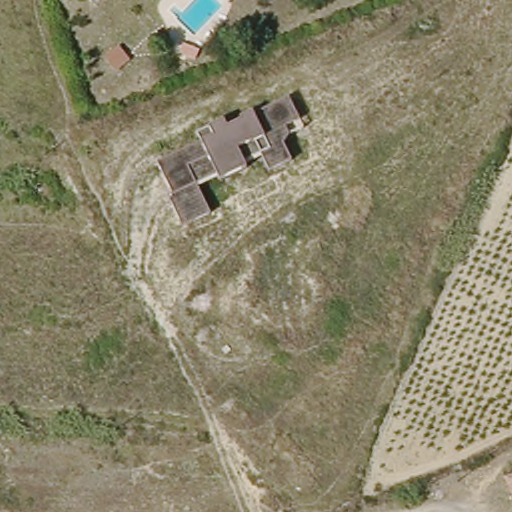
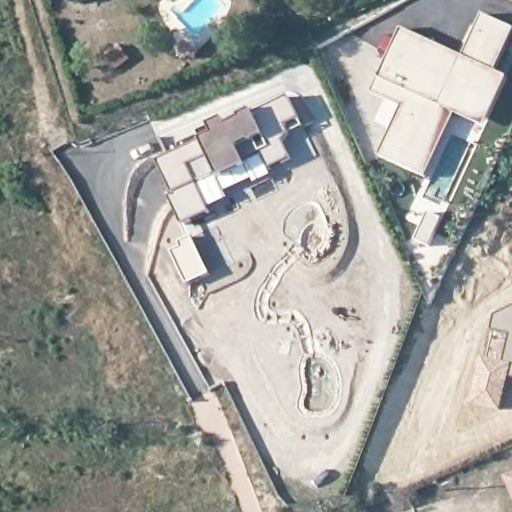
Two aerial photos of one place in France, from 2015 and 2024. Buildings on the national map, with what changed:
new [(400,26),(462,55),(481,14),(512,28),(512,39),(497,71),(510,77),(485,129),(455,116),(425,179),(377,157),(389,127),(397,107),(382,100),(370,92),(400,26)]
unchanged [(195,69),(176,60),(182,50),(200,58),(195,69)]
unchanged [(167,195),(171,192),(157,163),(200,142),(197,133),(210,127),(225,120),(228,125),(255,113),(290,97),(302,121),(288,128),(291,134),(285,144),(292,162),(272,172),(263,155),(245,162),(247,168),(200,189),(212,214),(182,226),(167,195)]
new [(182,250),(180,245),(194,239),(213,278),(190,288),(174,255),(182,250)]
new [(512,308),(512,382),(509,381),(500,411),(472,402),(497,315),(512,308)]
unchanged [(504,475),(512,472),(512,497),(504,475)]

